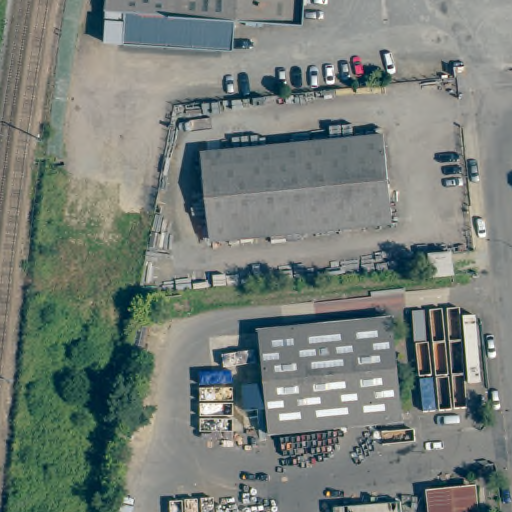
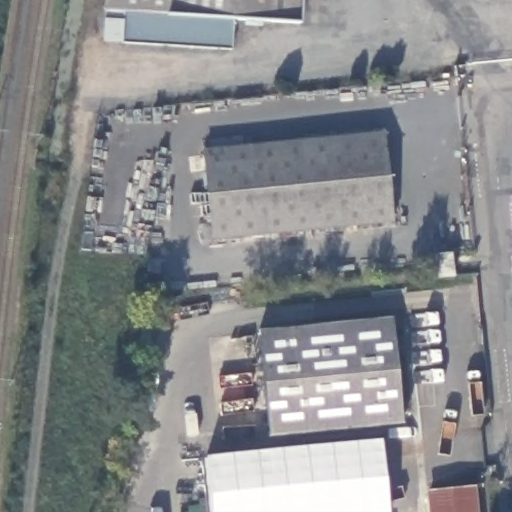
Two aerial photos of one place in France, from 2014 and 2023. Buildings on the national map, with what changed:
unchanged [(122,44),(123,29),(104,28),(105,13),(107,0),(301,0),(300,24),(234,21),(232,51),(122,44)]
unchanged [(202,153),(383,135),(392,222),(211,240),(202,153)]
unchanged [(450,256),(452,277),(431,279),(429,268),(428,258),(450,256)]
unchanged [(257,332),(391,319),(401,421),(267,434),(257,332)]
new [(381,440),(388,512),(210,512),(204,457),(381,440)]
unchanged [(472,490),(474,512),(430,512),(428,495),(472,490)]

